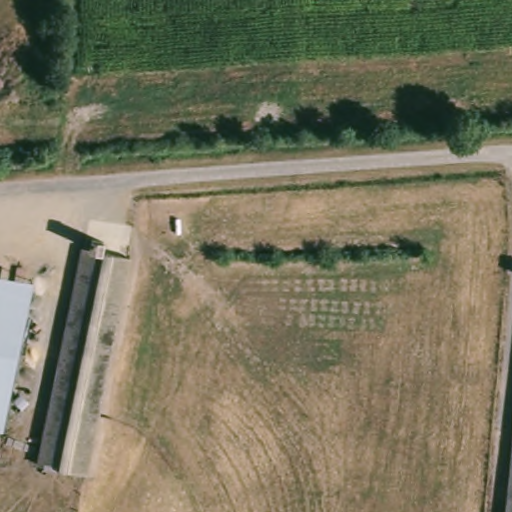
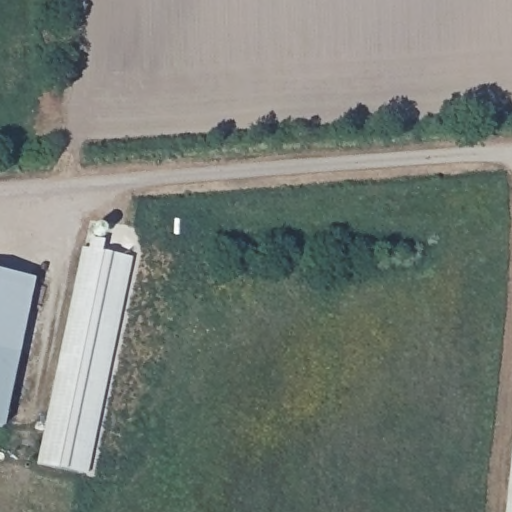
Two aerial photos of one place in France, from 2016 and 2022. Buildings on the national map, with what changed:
unchanged [(130,256),(92,472),(44,463),(81,247),(130,256)]
unchanged [(3,430),(0,430),(0,273),(34,279),(3,430)]

